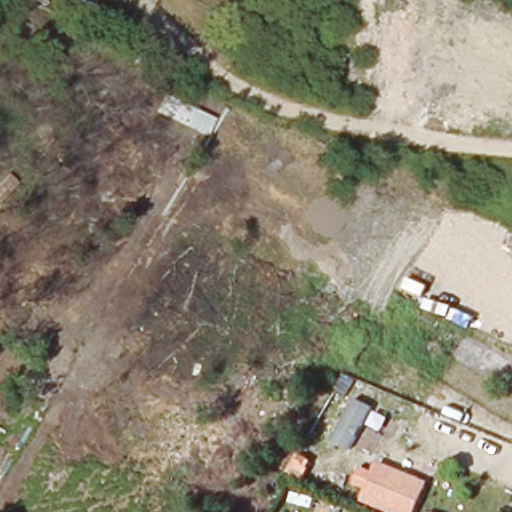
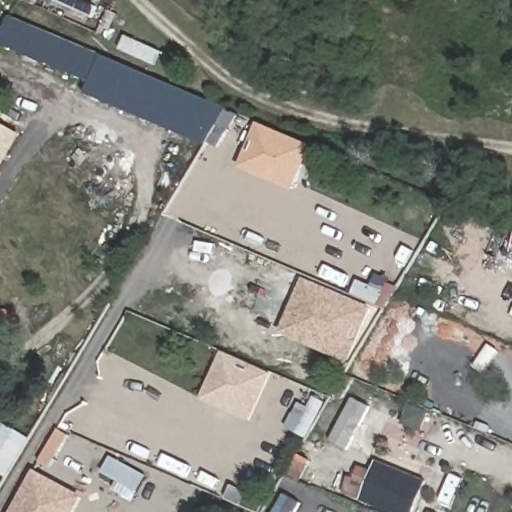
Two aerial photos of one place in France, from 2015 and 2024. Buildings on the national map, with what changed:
new [(220,110),(202,145),(82,94),(88,83),(57,70),(33,60),(0,46),(0,28),(6,17),(99,55),(220,110)]
new [(237,167),(256,121),(312,146),(293,191),(237,167)]
new [(20,135),(0,170),(0,122),(20,135)]
new [(356,280),(371,285),(374,276),(396,286),(386,307),(374,302),(349,363),(280,333),(303,278),(350,295),(356,280)]
new [(272,373),(250,422),(200,400),(222,351),(272,373)]
new [(323,402),(306,436),(287,427),(299,403),(307,405),(312,396),(323,402)]
new [(353,399),(369,408),(348,448),(331,439),(353,399)]
new [(4,477),(0,474),(0,421),(29,440),(4,477)]
unchanged [(413,512),(391,512),(360,500),(365,488),(354,483),(361,465),(373,469),(376,460),(427,480),(413,512)]
new [(83,496),(75,512),(10,512),(34,469),(83,496)]

